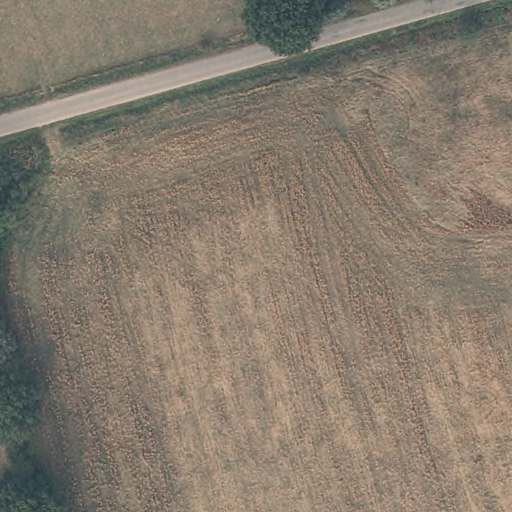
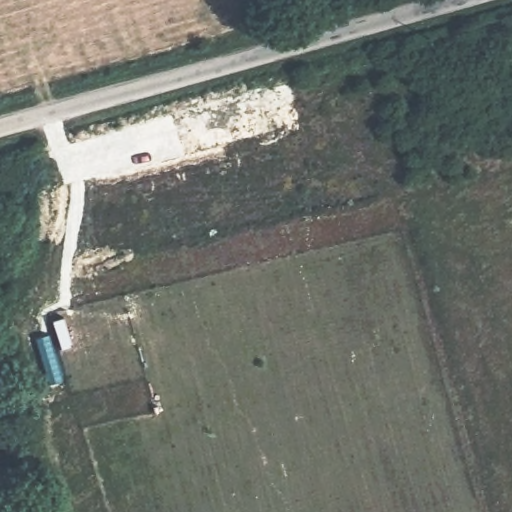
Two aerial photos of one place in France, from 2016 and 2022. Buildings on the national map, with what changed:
[]

